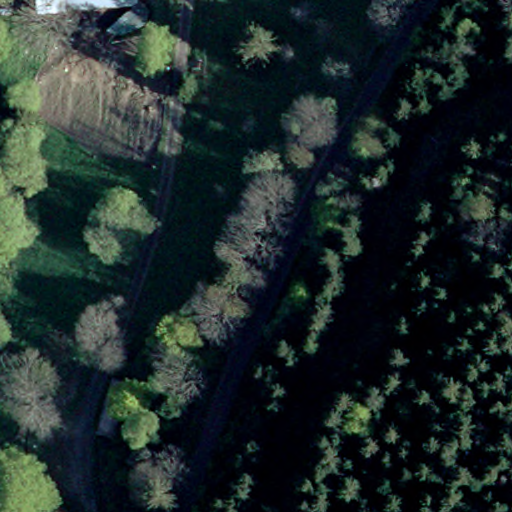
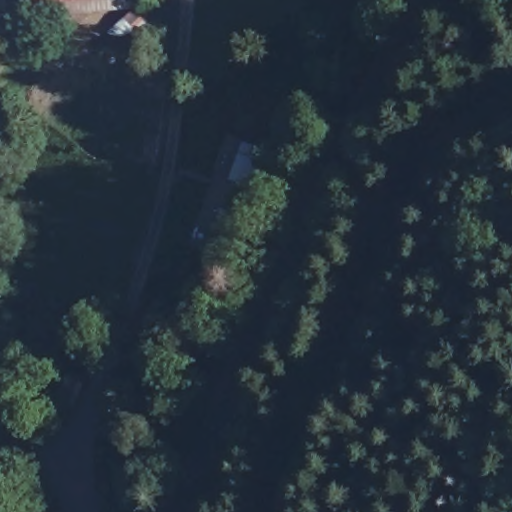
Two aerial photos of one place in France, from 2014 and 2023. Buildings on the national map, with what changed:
unchanged [(35,9),(34,0),(94,0),(35,9)]
unchanged [(127,376),(124,435),(102,436),(105,377),(127,376)]
unchanged [(52,512),(49,512),(50,510),(52,512)]

